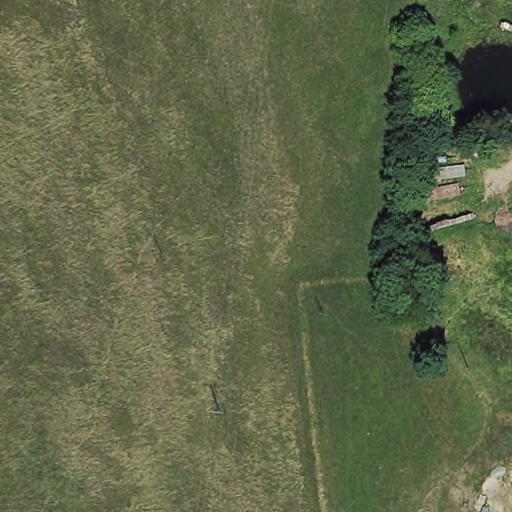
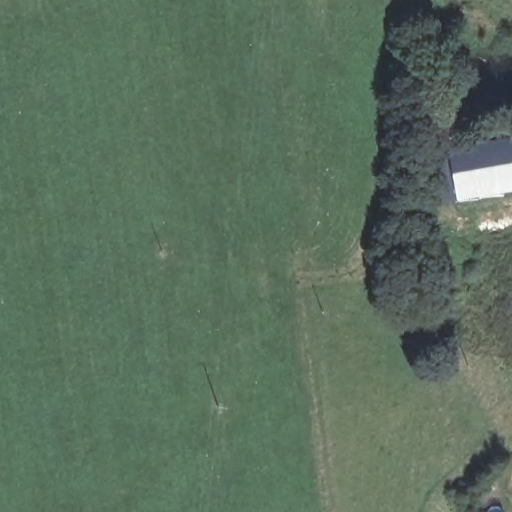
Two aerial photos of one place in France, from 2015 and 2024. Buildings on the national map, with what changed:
new [(447,150),(512,139),(512,192),(455,202),(447,150)]

